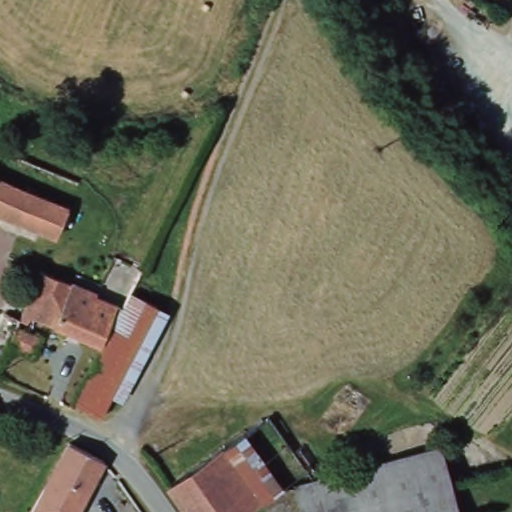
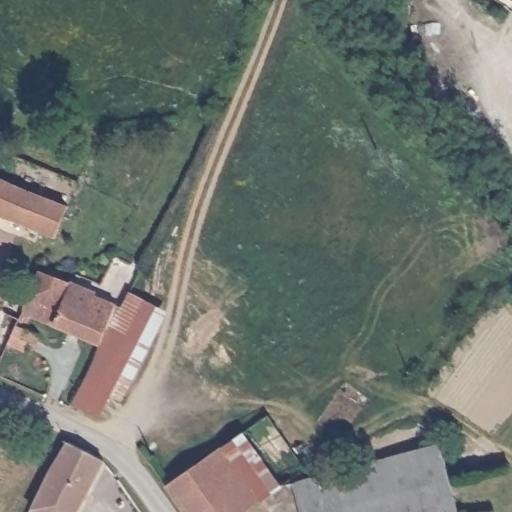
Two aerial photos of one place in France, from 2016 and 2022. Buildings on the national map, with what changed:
unchanged [(0,207),(0,143),(78,176),(57,224),(47,247),(35,241),(35,222),(0,207)]
unchanged [(101,349),(31,316),(29,322),(22,319),(40,282),(44,273),(95,293),(124,310),(101,349)]
unchanged [(144,277),(170,294),(91,424),(66,411),(101,349),(124,310),(144,277)]
unchanged [(19,328),(20,325),(41,336),(31,354),(11,344),(19,328)]
unchanged [(261,498),(248,508),(210,455),(245,431),(255,444),(273,433),(300,472),(261,498)]
unchanged [(63,442),(100,465),(74,512),(26,512),(24,511),(60,448),(63,442)]
unchanged [(248,508),(242,512),(183,512),(166,487),(210,455),(248,508)]
unchanged [(286,492),(261,498),(300,472),(314,494),(441,457),(456,512),(293,512),(286,492)]

